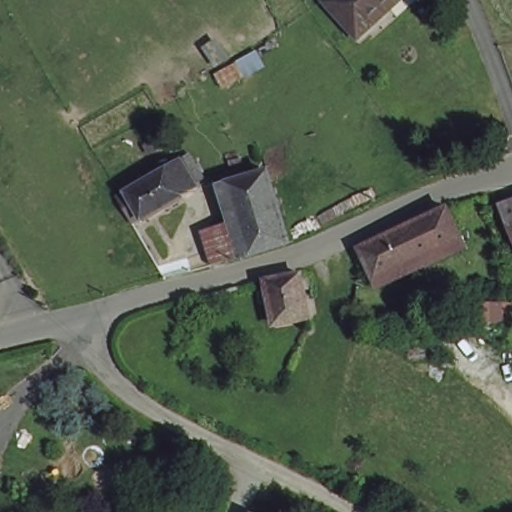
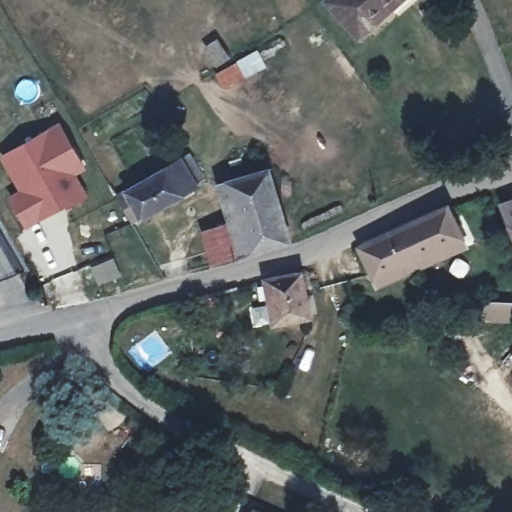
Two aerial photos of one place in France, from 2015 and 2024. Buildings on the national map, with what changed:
unchanged [(329,6),(335,0),(402,0),(395,7),(360,39),(329,6)]
new [(7,196),(17,190),(0,161),(0,155),(58,121),(85,169),(75,175),(88,196),(25,229),(7,196)]
unchanged [(208,185),(138,221),(121,189),(190,152),(208,185)]
unchanged [(218,182),(267,170),(287,244),(237,257),(228,222),(218,182)]
unchanged [(452,210),(470,251),(383,288),(367,249),(452,210)]
unchanged [(510,214),(512,212),(512,219),(510,214)]
unchanged [(207,264),(198,231),(228,222),(237,257),(207,264)]
unchanged [(300,271),(311,318),(279,326),(268,280),(300,271)]

